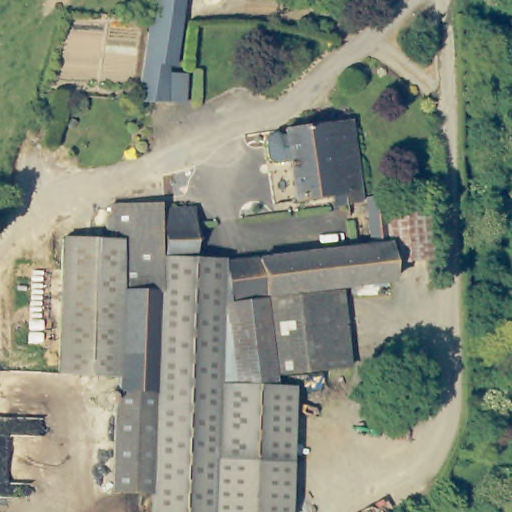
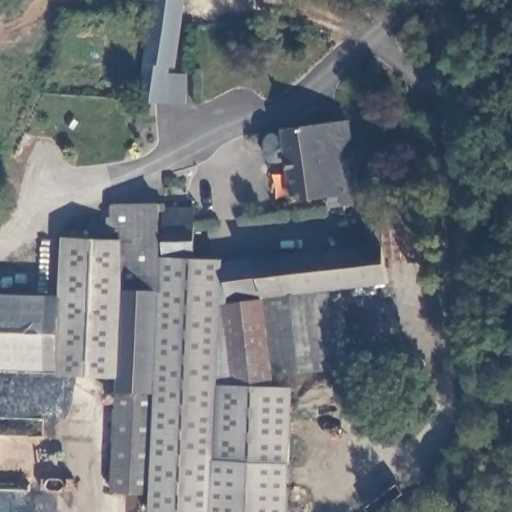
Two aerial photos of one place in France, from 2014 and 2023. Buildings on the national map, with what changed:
unchanged [(180,105),(167,103),(139,100),(153,0),(183,0),(172,72),(184,74),(180,105)]
unchanged [(330,195),(293,200),(288,159),(276,160),(271,160),(267,156),(265,146),(265,140),(267,135),(274,132),(278,136),(285,135),(284,130),(348,121),(360,202),(342,205),(331,206),(330,195)]
unchanged [(368,246),(363,199),(379,197),(389,281),(266,295),(229,300),(224,266),(368,246)]
unchanged [(160,207),(151,491),(112,491),(116,390),(116,376),(120,290),(120,264),(120,240),(120,235),(120,230),(111,230),(110,205),(120,205),(159,204),(165,204),(165,207),(160,207)]
unchanged [(293,389),(291,512),(152,512),(151,491),(160,207),(165,207),(166,252),(195,256),(224,266),(229,300),(266,295),(266,298),(275,374),(275,386),(293,389)]
unchanged [(194,208),(195,256),(166,252),(165,207),(194,208)]
unchanged [(382,212),(425,208),(430,258),(387,262),(382,212)]
unchanged [(104,240),(104,234),(120,235),(120,240),(120,264),(120,290),(116,376),(102,376),(58,376),(61,240),(104,240)]
unchanged [(266,298),(341,291),(350,366),(275,374),(266,298)]
new [(58,370),(0,368),(0,293),(60,295),(60,303),(58,370)]

